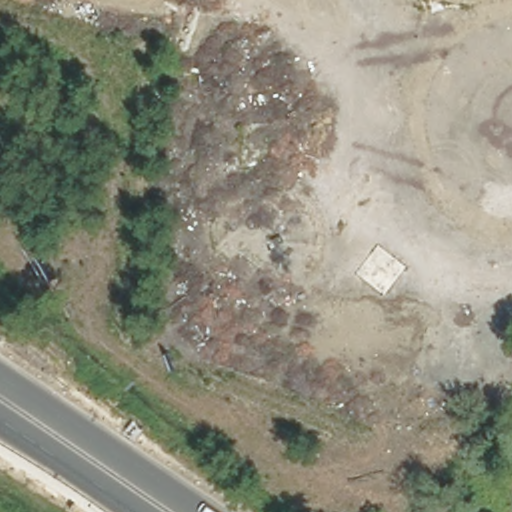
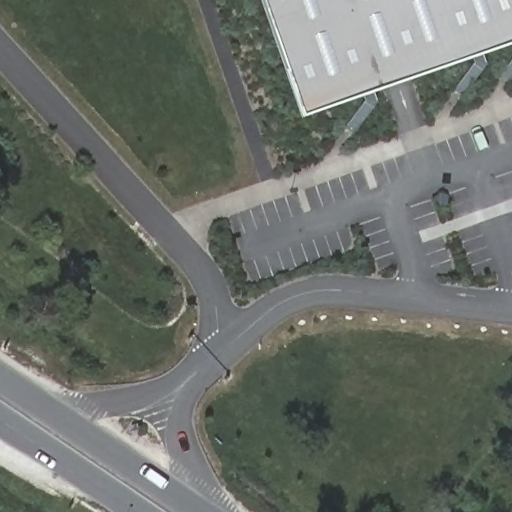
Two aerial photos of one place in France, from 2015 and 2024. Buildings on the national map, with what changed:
new [(260,0),(512,0),(512,45),(301,118),(260,0)]

